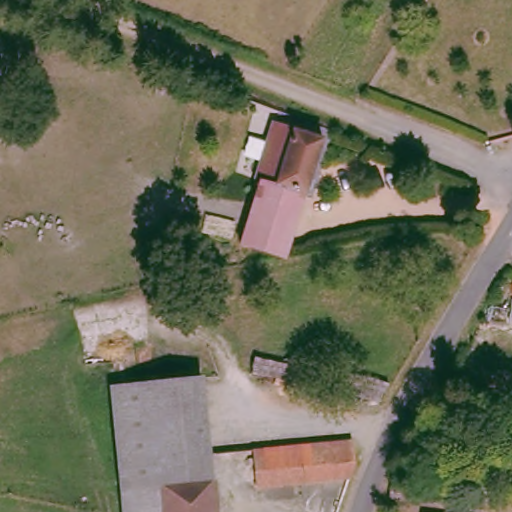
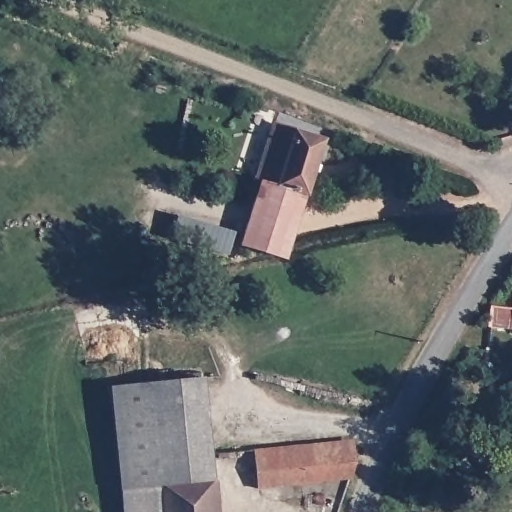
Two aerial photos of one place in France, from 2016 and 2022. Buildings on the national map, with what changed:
unchanged [(326,133),(286,261),(243,247),(263,182),(258,181),(280,116),(326,133)]
unchanged [(501,305),(512,306),(512,340),(490,339),(492,316),(501,316),(501,305)]
unchanged [(109,394),(195,383),(211,487),(215,486),(216,512),(126,512),(125,489),(109,394)]
unchanged [(351,461),(260,469),(258,450),(350,441),(351,461)]
unchanged [(351,461),(360,460),(355,477),(262,486),(260,469),(351,461)]

